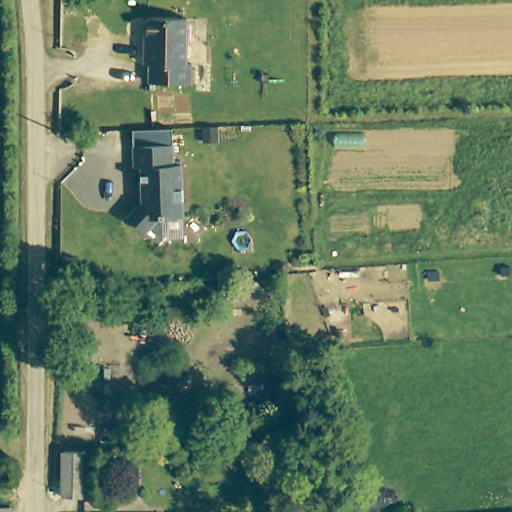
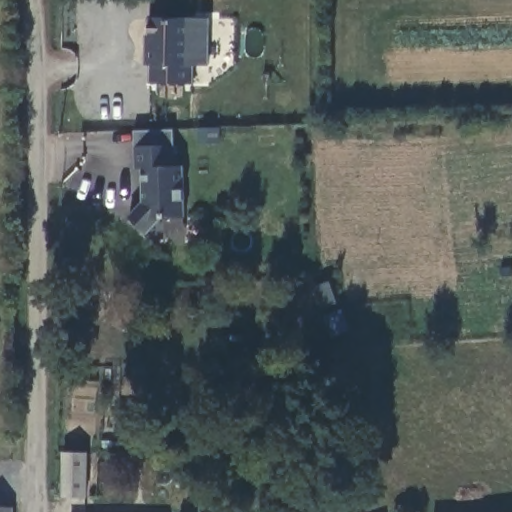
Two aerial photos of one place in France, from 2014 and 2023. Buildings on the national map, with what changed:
unchanged [(147,87),(147,70),(142,70),(142,50),(145,50),(146,25),(185,25),(184,19),(209,19),(209,68),(190,66),(189,88),(147,87)]
unchanged [(185,164),(186,215),(163,217),(148,231),(131,215),(143,200),(142,167),(136,167),(135,145),(135,129),(174,127),(174,144),(176,144),(177,165),(185,164)]
unchanged [(161,423),(161,438),(122,439),(122,423),(161,423)]
unchanged [(62,451),(84,451),(85,497),(63,497),(62,452),(62,451)]
unchanged [(0,510),(12,510),(12,512),(0,512),(0,510)]

